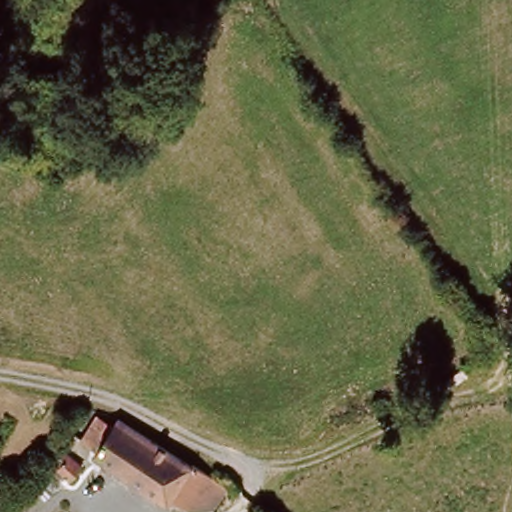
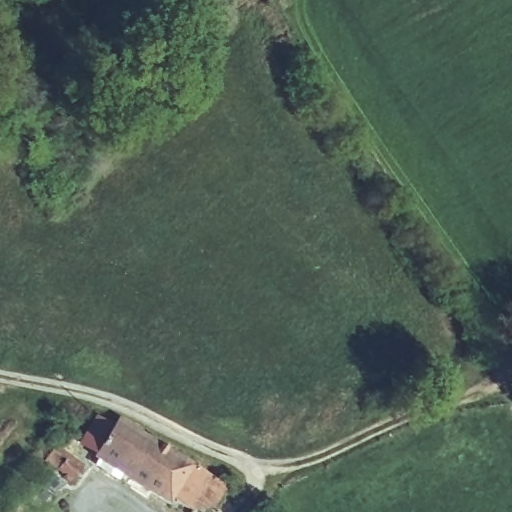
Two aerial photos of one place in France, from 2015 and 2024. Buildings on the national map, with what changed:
unchanged [(212,469),(229,480),(205,512),(203,512),(188,503),(186,506),(94,453),(114,421),(129,431),(134,425),(209,474),(212,469)]
unchanged [(71,478),(44,455),(56,442),(84,466),(71,478)]

